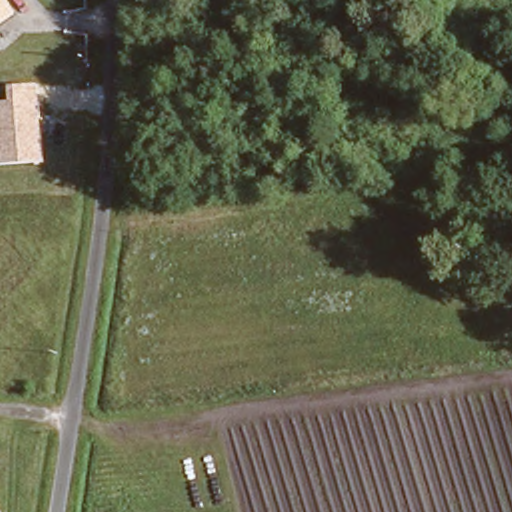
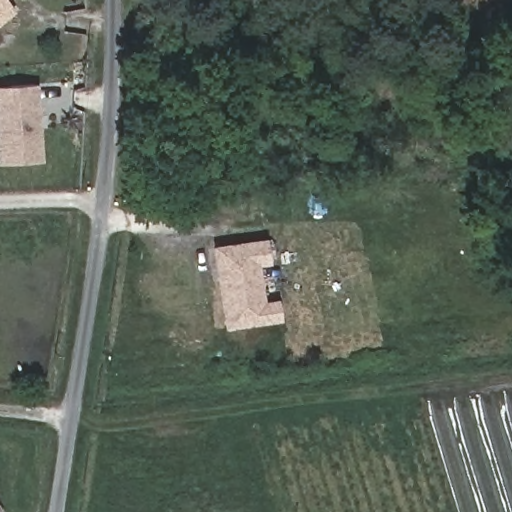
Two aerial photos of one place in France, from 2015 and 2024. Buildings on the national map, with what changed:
unchanged [(0,22),(0,0),(8,0),(15,10),(0,22)]
unchanged [(0,165),(0,101),(8,100),(7,86),(37,84),(43,162),(0,165)]
new [(260,242),(264,263),(254,264),(260,307),(272,305),(275,320),(221,329),(210,249),(260,242)]

